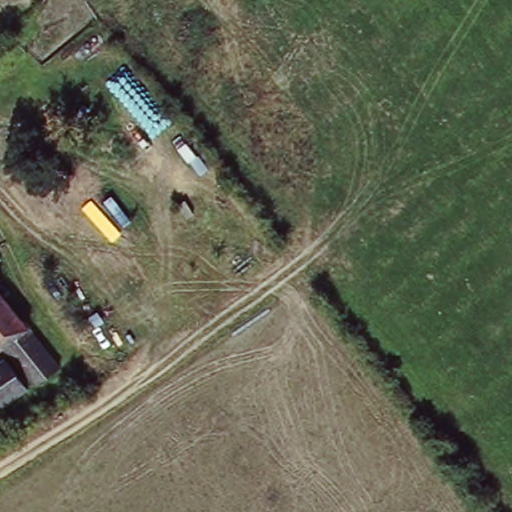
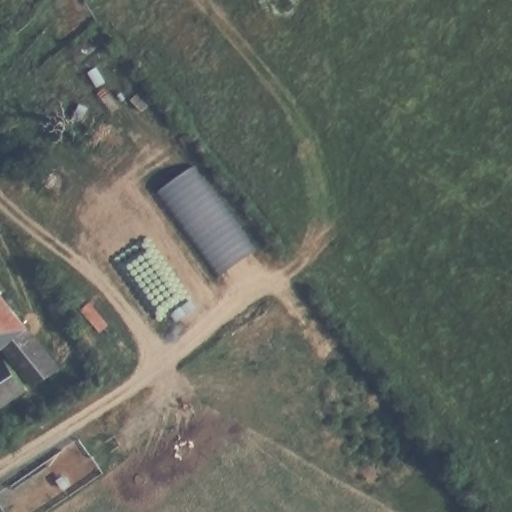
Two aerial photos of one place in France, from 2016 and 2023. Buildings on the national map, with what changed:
new [(256,250),(220,277),(161,197),(197,167),(256,250)]
unchanged [(3,279),(0,282),(0,276),(3,279)]
unchanged [(55,371),(31,387),(6,352),(0,354),(0,292),(55,371)]
unchanged [(0,360),(22,392),(0,408),(0,360)]

